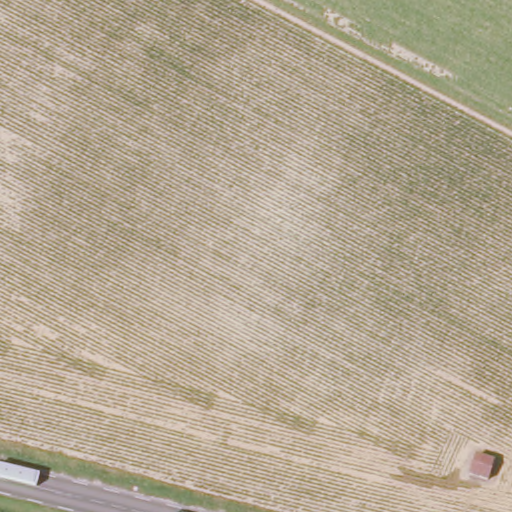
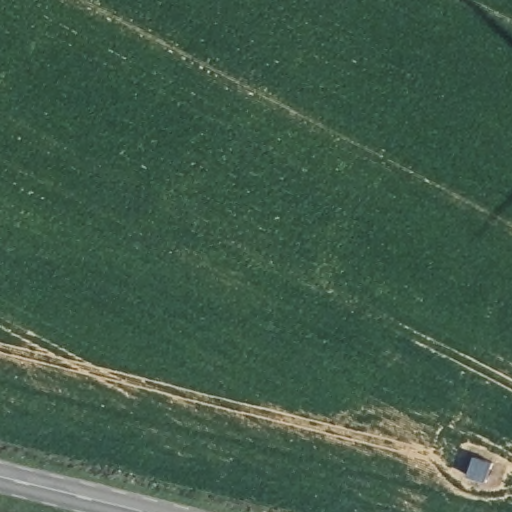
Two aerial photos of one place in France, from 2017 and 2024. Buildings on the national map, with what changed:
unchanged [(475,458),(501,464),(495,484),(470,479),(475,458)]

